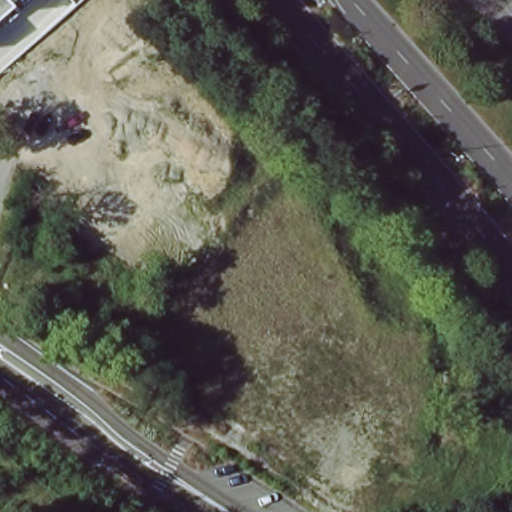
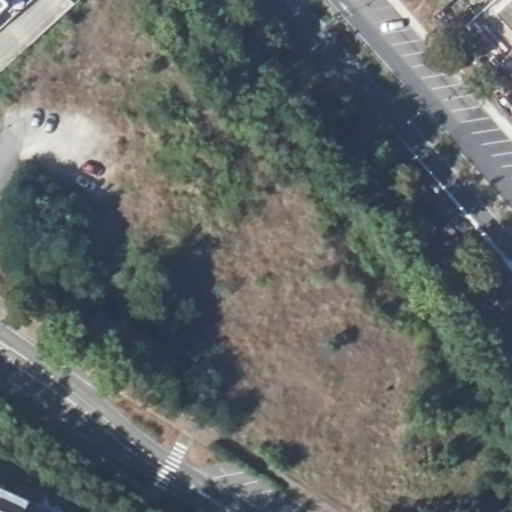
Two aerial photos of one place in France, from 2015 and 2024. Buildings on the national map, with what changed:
unchanged [(0,0),(12,0),(0,11),(0,0)]
new [(21,512),(0,512),(0,490),(26,502),(21,512)]
new [(26,502),(52,512),(21,512),(26,502)]

